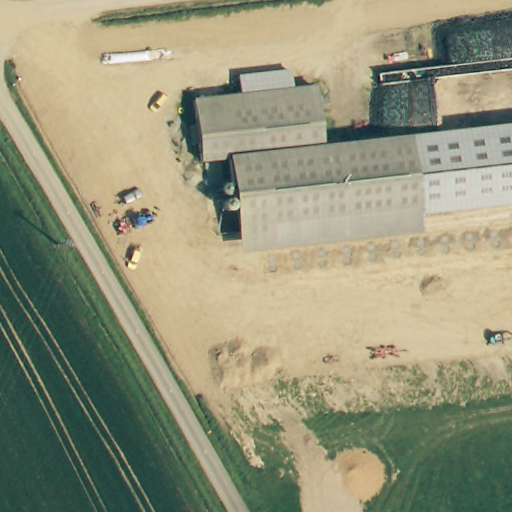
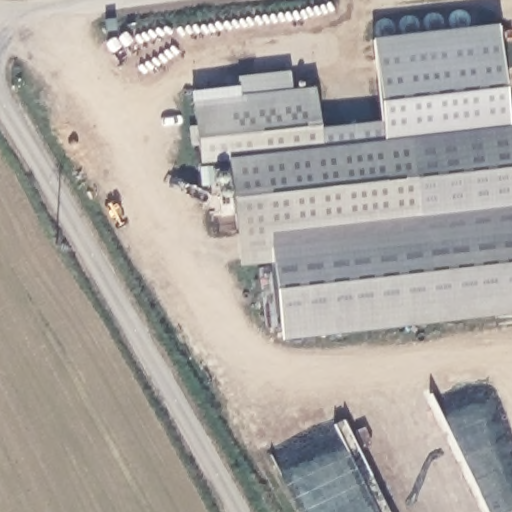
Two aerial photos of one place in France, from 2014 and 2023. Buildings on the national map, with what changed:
new [(495,24),(509,125),(321,145),(318,126),(380,119),(371,36),(495,24)]
unchanged [(512,124),(512,205),(418,216),(420,235),(236,254),(230,211),(220,212),(217,185),(227,184),(224,160),(200,163),(194,100),(238,95),(237,75),(288,70),(289,88),(310,85),(321,145),(512,124)]
new [(282,338),(273,263),(237,266),(236,254),(420,235),(418,216),(512,205),(512,315),(282,338)]

